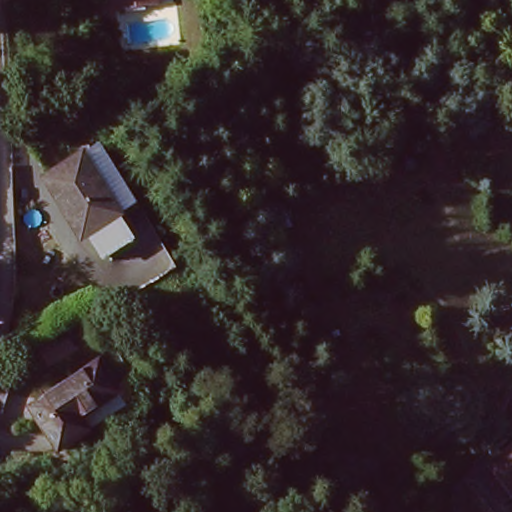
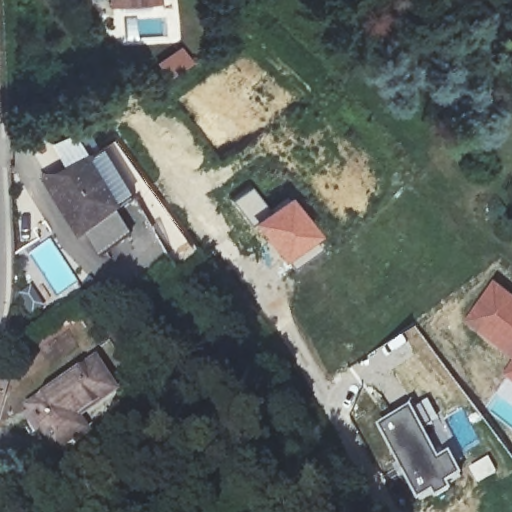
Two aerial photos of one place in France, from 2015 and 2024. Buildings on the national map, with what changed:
unchanged [(157,4),(120,8),(119,0),(157,0),(157,4)]
unchanged [(79,239),(60,207),(53,211),(35,178),(75,157),(112,219),(79,239)]
new [(251,186),(267,206),(285,192),(316,231),(311,236),(319,247),(290,269),(232,200),(251,186)]
new [(512,297),(512,385),(500,377),(510,364),(464,325),(496,284),(512,297)]
unchanged [(34,403),(94,364),(113,393),(73,420),(80,432),(52,450),(38,430),(24,409),(34,403)]
new [(413,408),(415,411),(429,402),(440,422),(425,430),(440,462),(452,455),(465,479),(450,487),(454,493),(436,502),(434,498),(420,505),(377,427),(413,408)]
demolished [(485,476),(512,456),(512,499),(509,502),(485,476)]

